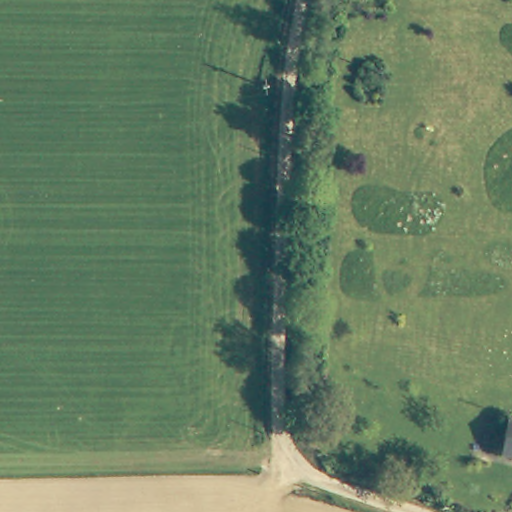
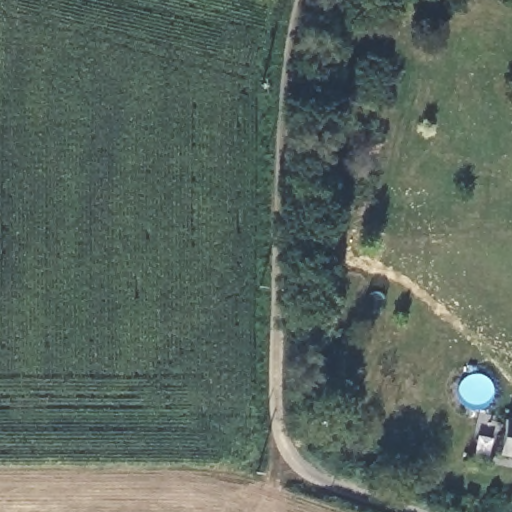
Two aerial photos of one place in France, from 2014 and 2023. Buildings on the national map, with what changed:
unchanged [(512,456),(500,455),(503,421),(512,423),(512,456)]

